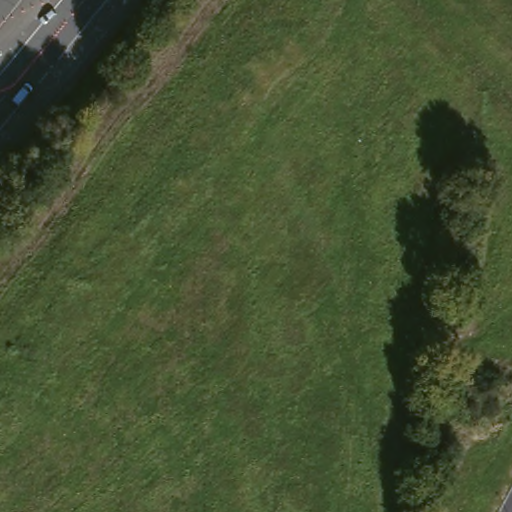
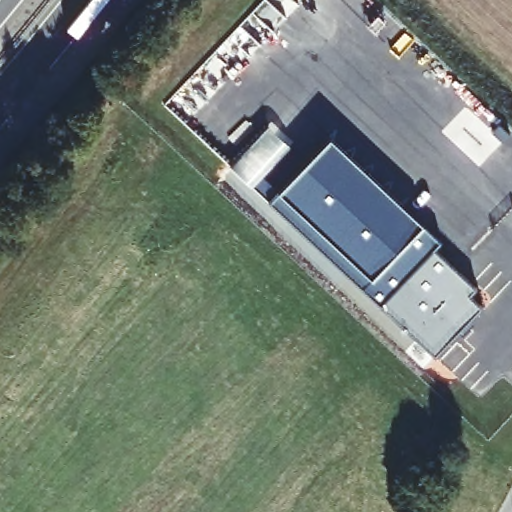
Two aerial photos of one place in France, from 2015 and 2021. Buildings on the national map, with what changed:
new [(329,136),(441,240),(434,248),(476,287),(469,295),(482,306),(434,357),(268,202),(329,136)]

